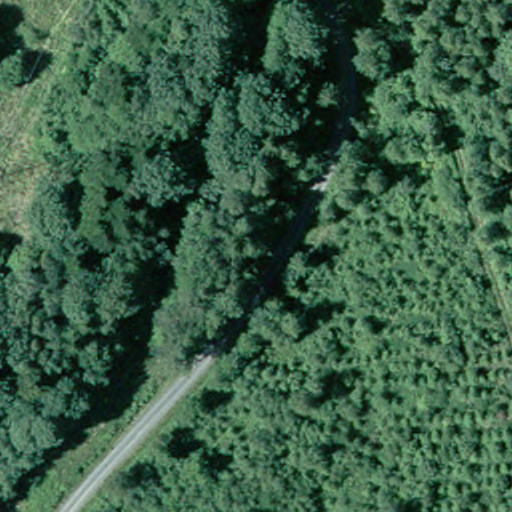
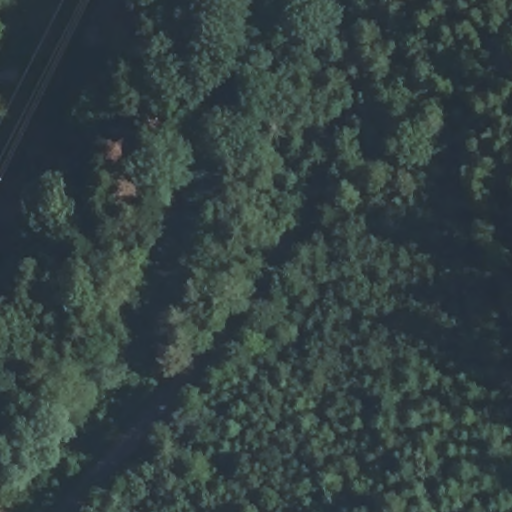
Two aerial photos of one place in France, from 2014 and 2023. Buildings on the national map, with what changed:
[]

